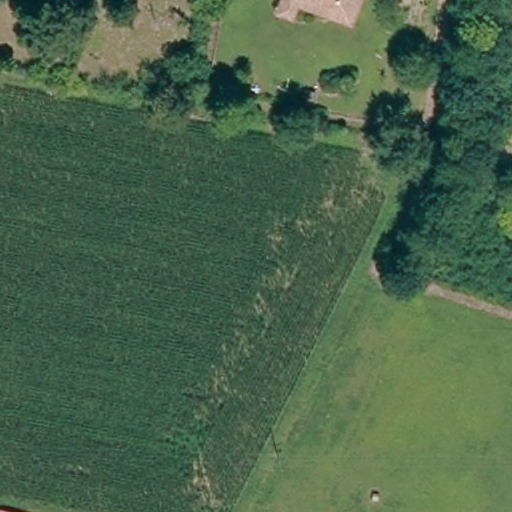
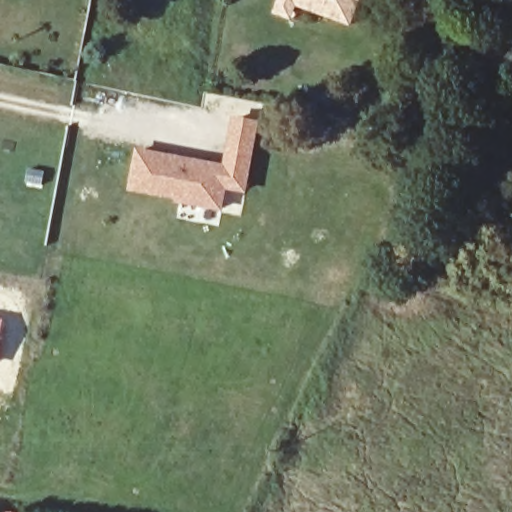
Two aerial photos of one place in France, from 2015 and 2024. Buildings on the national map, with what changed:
unchanged [(297,19),(280,12),(285,0),(365,0),(356,24),(334,15),(302,5),(297,19)]
new [(190,160),(201,162),(229,167),(232,150),(237,119),(260,123),(254,153),(248,190),(229,186),(225,209),(181,201),(182,197),(135,190),(141,151),(190,160)]
new [(0,338),(0,318),(5,318),(0,338)]

